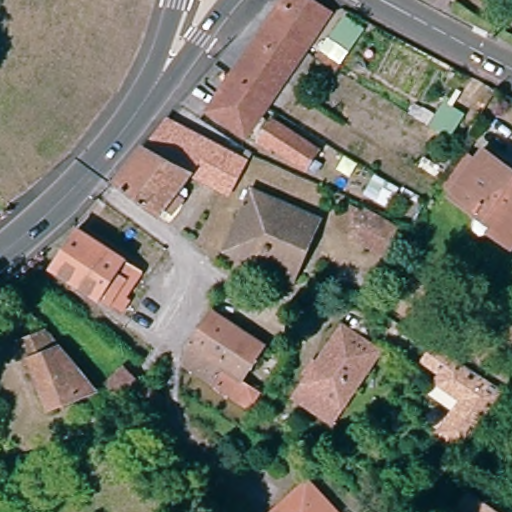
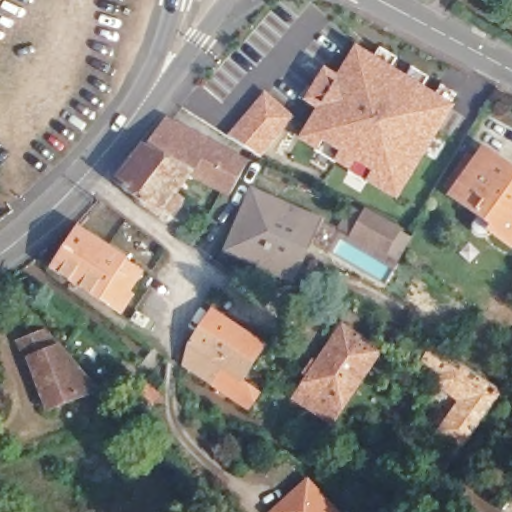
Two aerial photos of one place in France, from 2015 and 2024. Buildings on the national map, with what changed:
demolished [(244,138),(206,113),(281,2),(293,0),(307,0),(328,15),(259,116),(244,138)]
new [(338,76),(355,45),(456,106),(398,201),(296,141),(316,111),(303,101),(324,68),(338,76)]
new [(294,117),(260,158),(229,136),(265,91),(294,117)]
demolished [(259,142),(270,123),(317,153),(306,172),(259,142)]
unchanged [(184,175),(169,195),(174,200),(174,205),(168,213),(163,213),(158,210),(152,216),(112,185),(139,151),(143,153),(163,124),(241,164),(224,195),(216,191),(184,175)]
unchanged [(512,241),(504,251),(486,239),(490,233),(448,203),(448,201),(436,193),(458,161),(471,170),(478,161),(512,185),(512,241)]
unchanged [(252,192),(317,221),(290,281),(225,252),(252,192)]
unchanged [(361,207),(396,227),(380,253),(345,233),(361,207)]
unchanged [(77,232),(141,273),(123,299),(128,302),(120,314),(51,271),(77,232)]
unchanged [(189,349),(211,314),(262,347),(241,381),(257,392),(247,408),(184,367),(189,349)]
unchanged [(309,404),(291,390),(331,340),(344,323),(351,329),(379,350),(337,403),(326,417),(309,404)]
unchanged [(47,410),(29,364),(26,364),(18,344),(45,333),(95,391),(47,410)]
unchanged [(428,393),(441,384),(431,379),(436,374),(424,368),(438,347),(505,392),(459,453),(433,434),(451,409),(428,393)]
unchanged [(123,365),(140,382),(121,401),(104,384),(123,365)]
unchanged [(147,417),(140,410),(129,400),(146,384),(156,394),(163,401),(147,417)]
unchanged [(306,481),(332,512),(269,512),(272,509),(306,481)]
unchanged [(486,512),(460,512),(468,500),(486,512)]

